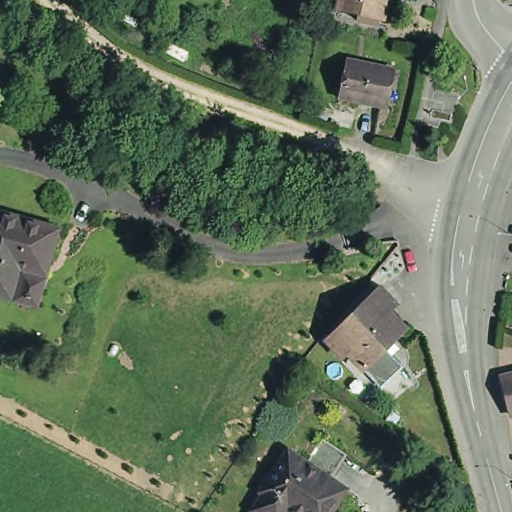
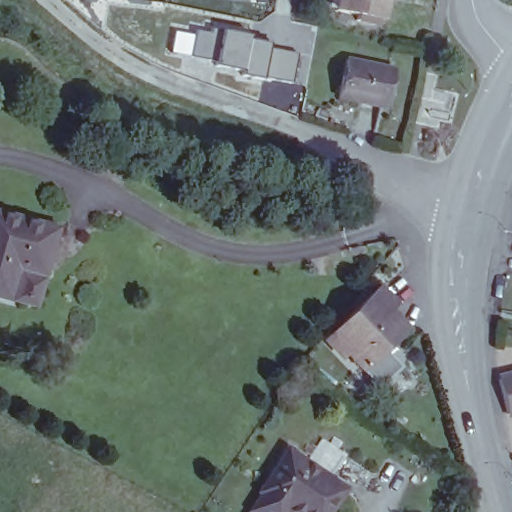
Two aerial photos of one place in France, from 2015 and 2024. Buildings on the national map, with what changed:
new [(268,1),(255,0),(268,0),(268,1)]
unchanged [(339,0),(386,0),(381,20),(378,19),(377,24),(356,20),(358,14),(336,10),(339,0)]
new [(301,53),(292,86),(191,64),(197,29),(301,53)]
unchanged [(347,58),(389,67),(381,104),(339,96),(347,58)]
unchanged [(22,255),(10,296),(0,294),(0,214),(56,229),(47,262),(22,255)]
unchanged [(22,255),(47,262),(35,303),(10,296),(22,255)]
unchanged [(321,333),(324,329),(328,325),(331,329),(371,289),(388,306),(347,345),(334,332),(327,339),(321,333)]
unchanged [(357,372),(365,364),(347,345),(388,306),(405,325),(384,345),(401,361),(381,380),(373,388),(357,372)]
unchanged [(512,411),(508,412),(499,377),(512,373),(512,411)]
unchanged [(321,507),(318,512),(296,512),(282,502),(275,512),(258,512),(248,505),(260,488),(257,486),(284,447),(301,459),(318,433),(341,449),(324,474),(338,484),(322,508),(321,507)]

